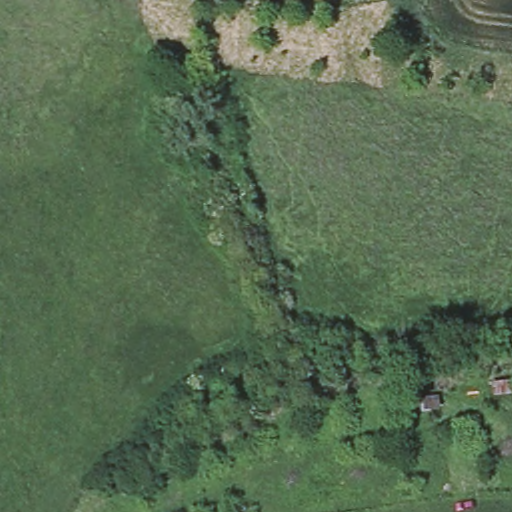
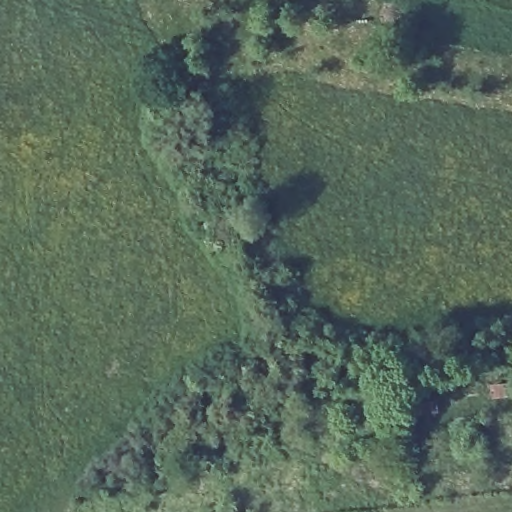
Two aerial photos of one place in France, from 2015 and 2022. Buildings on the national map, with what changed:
unchanged [(511,377),(512,385),(512,391),(491,394),(487,380),(511,377)]
unchanged [(434,407),(409,409),(407,395),(432,392),(434,407)]

